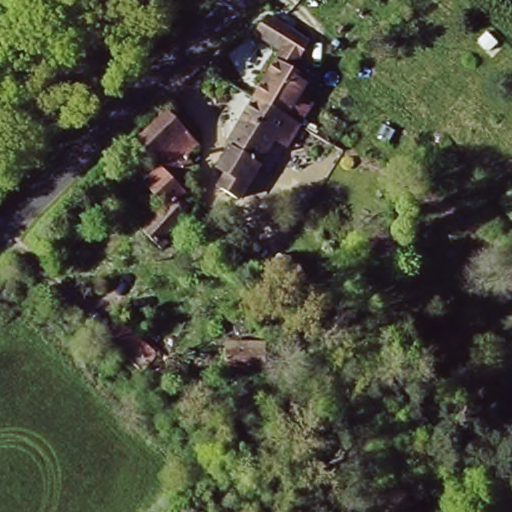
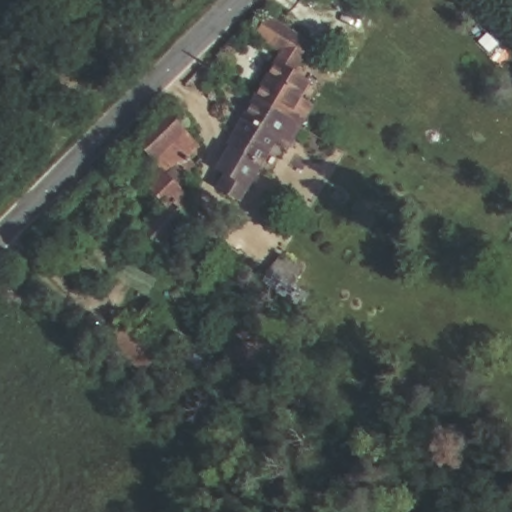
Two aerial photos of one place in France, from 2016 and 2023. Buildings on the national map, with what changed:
unchanged [(295,68),(249,41),(261,21),(307,48),(295,68)]
unchanged [(250,103),(271,69),(304,90),(296,104),(306,111),(294,130),(250,103)]
unchanged [(281,152),(271,146),(234,206),(216,195),(224,181),(212,173),(240,127),(236,125),(250,103),(294,130),(281,152)]
unchanged [(151,250),(141,240),(136,237),(159,212),(139,192),(154,176),(125,147),(146,126),(156,116),(185,144),(191,150),(171,173),(183,183),(173,196),(174,197),(178,200),(168,211),(179,221),(151,250)]
unchanged [(163,348),(151,364),(150,364),(113,332),(128,316),(163,348)]
unchanged [(270,369),(223,368),(223,344),(265,344),(270,369)]

